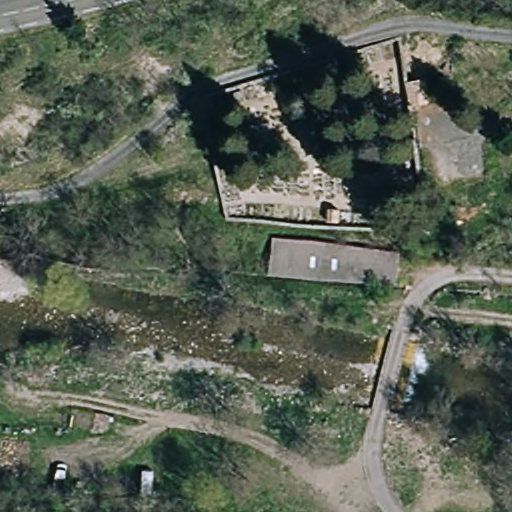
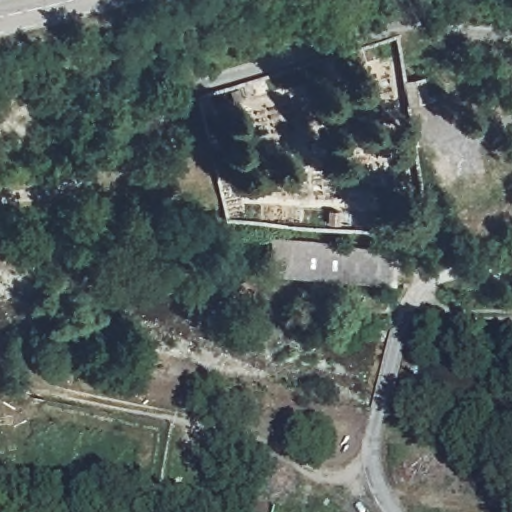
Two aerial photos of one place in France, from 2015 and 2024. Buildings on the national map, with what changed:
unchanged [(431,89),(412,94),(408,67),(427,63),(431,89)]
unchanged [(310,242),(410,245),(406,282),(272,275),(272,241),(310,242)]

